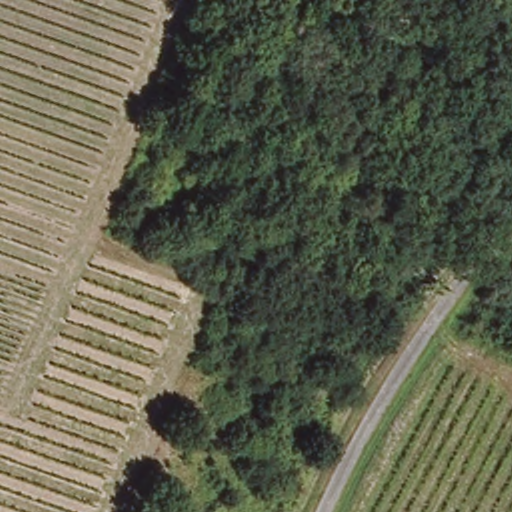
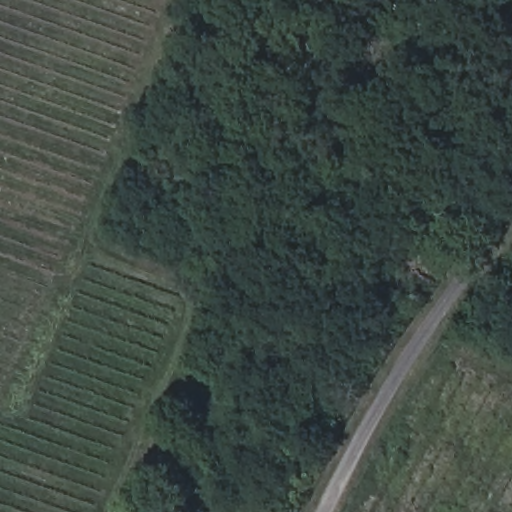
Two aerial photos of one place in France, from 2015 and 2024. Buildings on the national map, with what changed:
[]

